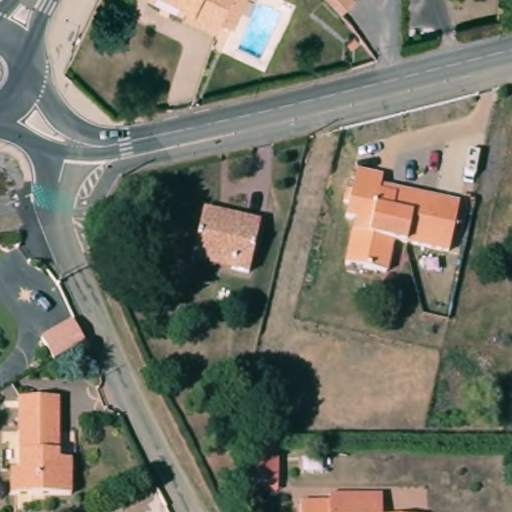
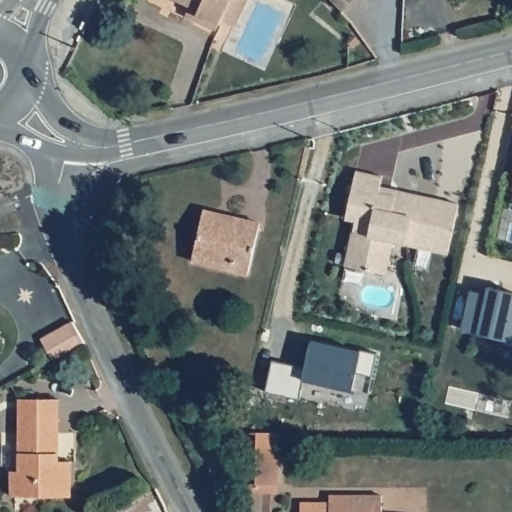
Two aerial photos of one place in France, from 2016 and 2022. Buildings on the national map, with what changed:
unchanged [(188,15),(193,5),(184,0),(251,0),(234,30),(220,22),(219,24),(199,13),(195,20),(188,15)]
unchanged [(338,9),(327,0),(348,0),(338,9)]
unchanged [(385,176),(381,192),(388,193),(389,188),(463,202),(451,254),(394,243),(386,275),(347,266),(357,220),(348,218),(356,171),(385,176)]
unchanged [(263,221),(250,279),(196,268),(208,211),(263,221)]
new [(470,290),(487,293),(489,286),(512,291),(512,340),(504,338),(480,332),(462,328),(470,290)]
unchanged [(86,341),(56,359),(43,337),(74,319),(86,341)]
new [(271,359),(304,366),(310,340),(358,351),(359,348),(376,352),(371,375),(355,372),(351,389),(303,379),(298,398),(264,390),(271,359)]
unchanged [(59,397),(62,456),(74,456),(76,493),(12,496),(11,470),(20,470),(17,398),(59,397)]
unchanged [(271,439),(263,491),(235,491),(243,440),(271,439)]
unchanged [(331,502),(331,495),(380,495),(380,512),(301,512),(300,503),(331,502)]

